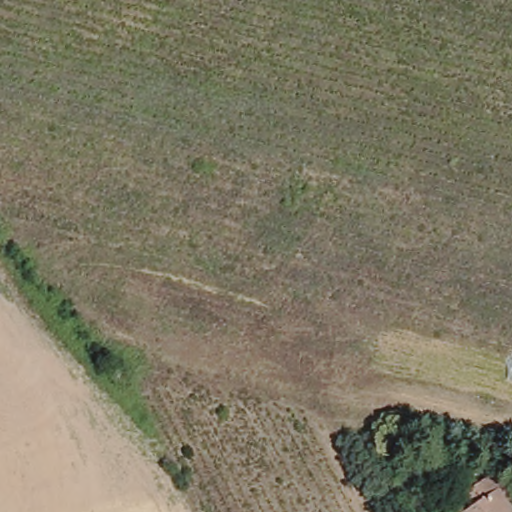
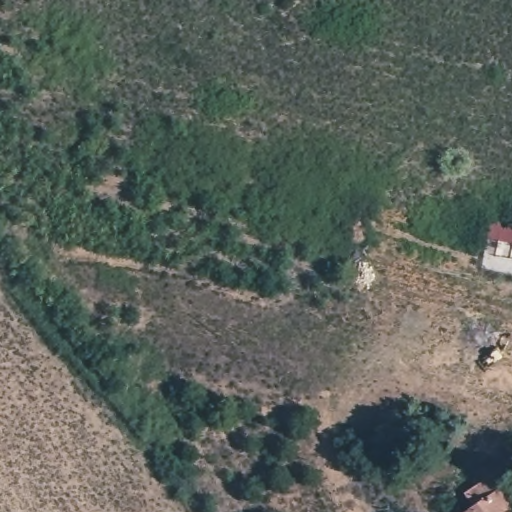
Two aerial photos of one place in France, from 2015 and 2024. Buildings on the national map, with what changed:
unchanged [(470,493),(504,469),(512,480),(512,498),(511,499),(512,500),(512,512),(465,512),(477,504),(470,493)]

